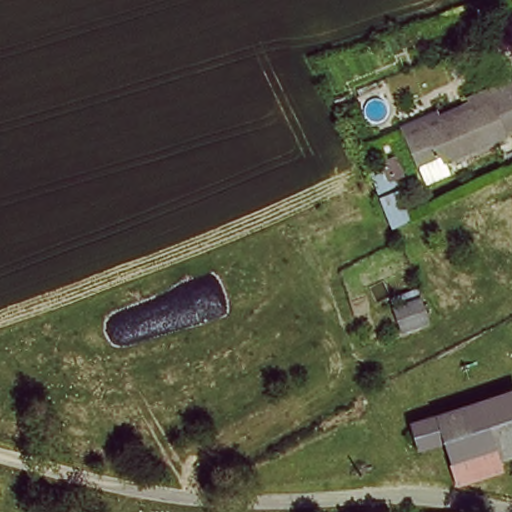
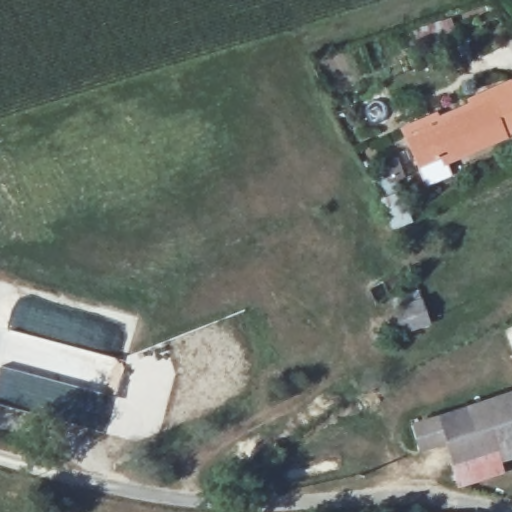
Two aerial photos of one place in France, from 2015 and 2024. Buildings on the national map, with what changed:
unchanged [(512,124),(512,136),(453,162),(449,156),(428,166),(414,137),(500,100),(512,124)]
unchanged [(420,288),(433,324),(399,333),(389,298),(420,288)]
unchanged [(504,457),(507,473),(462,487),(452,445),(424,455),(415,424),(444,415),(512,393),(512,455),(504,457)]

